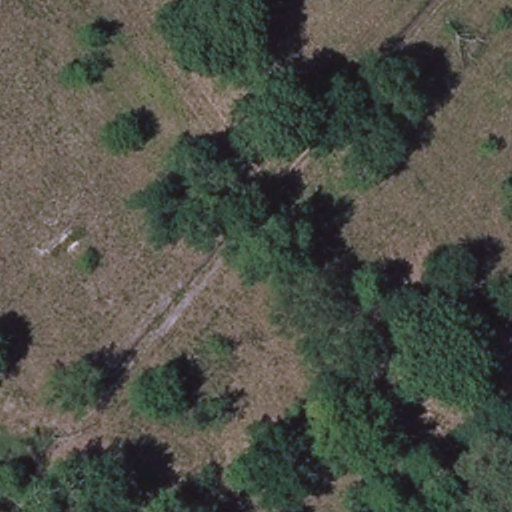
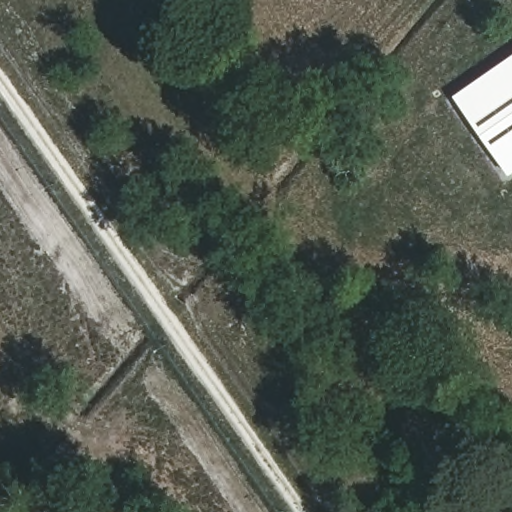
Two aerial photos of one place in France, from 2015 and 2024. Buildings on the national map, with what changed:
new [(512,176),(510,177),(455,94),(512,56),(512,176)]

